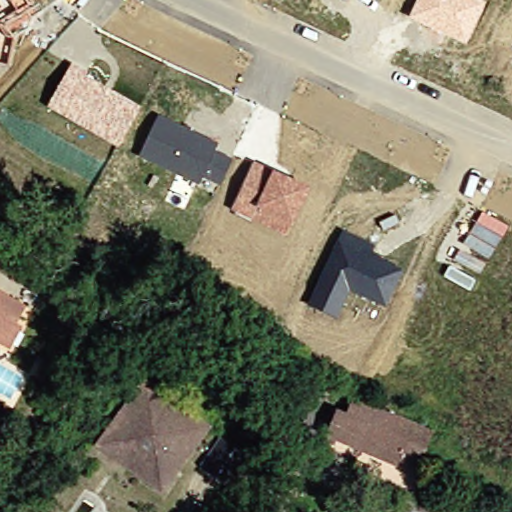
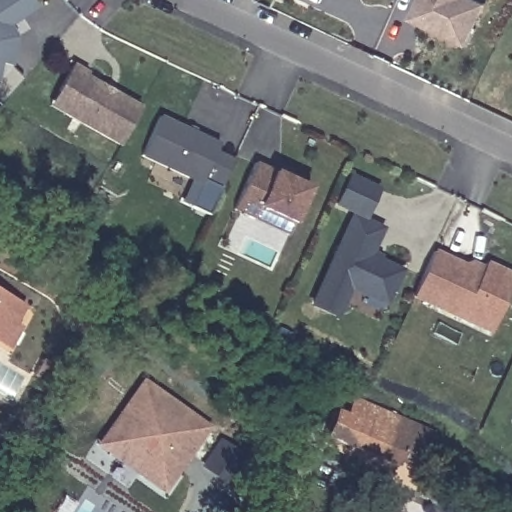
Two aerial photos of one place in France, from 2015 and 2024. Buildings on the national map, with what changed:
new [(13,43),(7,66),(0,64),(0,0),(32,0),(35,5),(5,25),(13,43)]
unchanged [(408,18),(417,0),(478,0),(485,3),(466,45),(408,18)]
unchanged [(116,146),(46,107),(71,64),(85,71),(84,76),(139,106),(116,146)]
unchanged [(222,184),(204,175),(199,184),(139,156),(158,116),(219,144),(215,153),(232,161),(222,184)]
unchanged [(291,223),(286,235),(231,210),(252,162),(271,171),(309,188),(291,223)]
new [(348,175),(380,189),(365,221),(334,207),(348,175)]
unchanged [(385,307),(348,289),(336,319),(305,305),(339,230),(375,245),(371,253),(405,269),(385,307)]
new [(481,275),(486,265),(512,277),(512,287),(490,333),(413,299),(434,253),(481,275)]
unchanged [(6,354),(0,350),(0,293),(21,304),(10,327),(19,332),(6,354)]
unchanged [(34,364),(45,369),(36,382),(26,377),(34,364)]
unchanged [(98,444),(146,382),(207,428),(160,489),(98,444)]
unchanged [(402,453),(399,459),(328,426),(338,404),(351,409),(360,388),(440,426),(422,461),(402,453)]
new [(214,432),(238,450),(220,474),(196,456),(214,432)]

